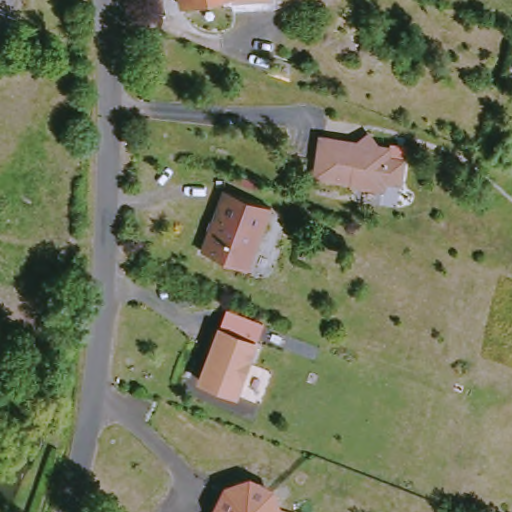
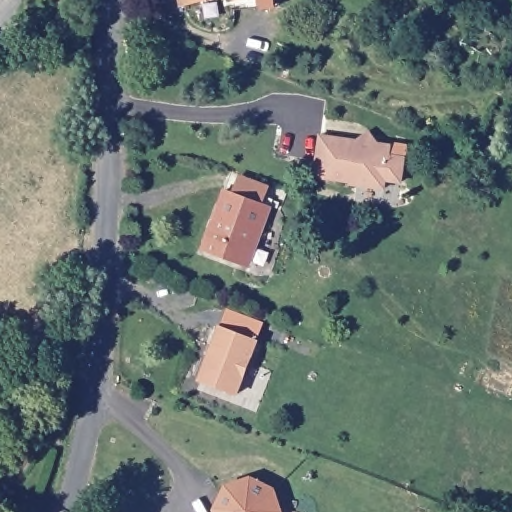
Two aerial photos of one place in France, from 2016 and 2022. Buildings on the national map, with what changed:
unchanged [(188,5),(187,0),(212,0),(188,5)]
unchanged [(246,5),(245,0),(264,0),(246,5)]
unchanged [(395,164),(407,164),(405,187),(391,187),(390,194),(357,189),(357,185),(322,181),(327,141),(365,146),(374,140),(382,144),(382,148),(395,151),(395,164)]
unchanged [(256,270),(214,253),(236,193),(280,209),(256,270)]
unchanged [(244,392),(207,379),(227,325),(264,339),(244,392)]
unchanged [(232,495),(242,488),(255,488),(267,490),(275,497),(281,506),(282,512),(223,512),(225,504),(232,495)]

